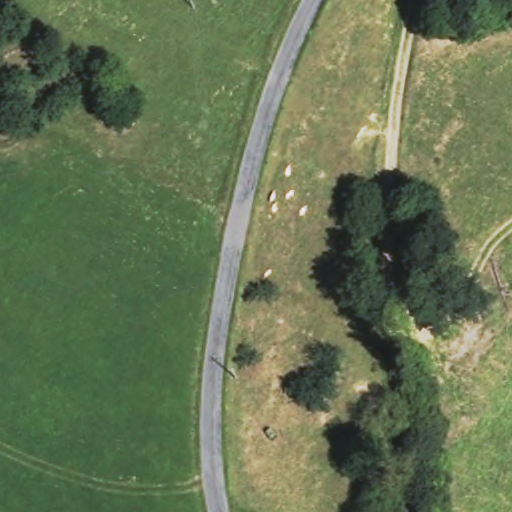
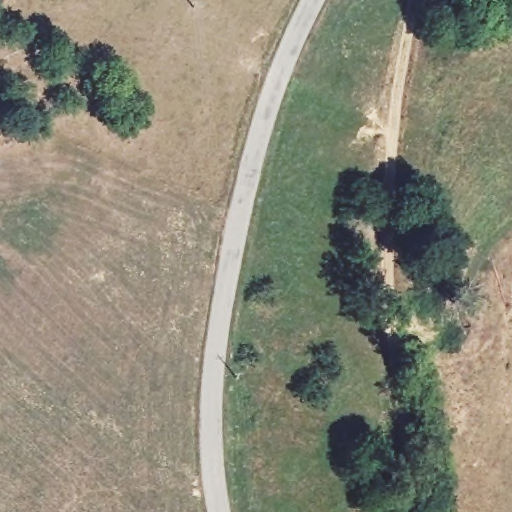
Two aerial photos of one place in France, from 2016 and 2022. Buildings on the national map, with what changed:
unchanged [(488,2),(484,0),(489,0),(488,2)]

